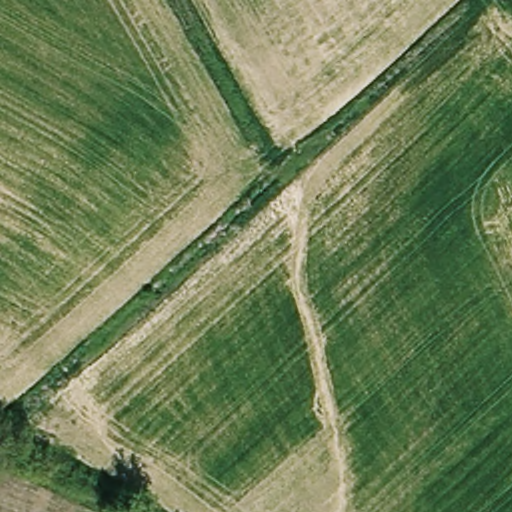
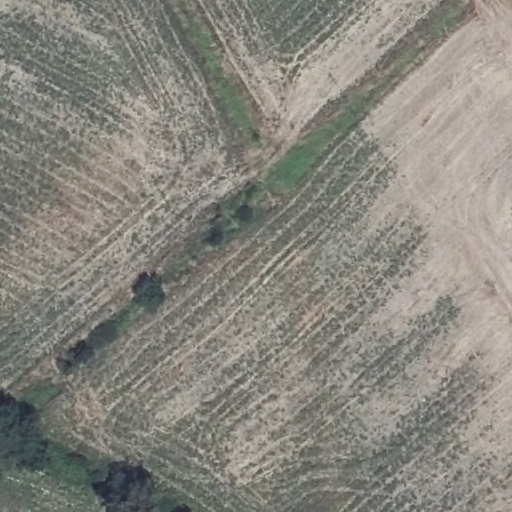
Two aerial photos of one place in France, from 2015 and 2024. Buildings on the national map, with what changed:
[]

